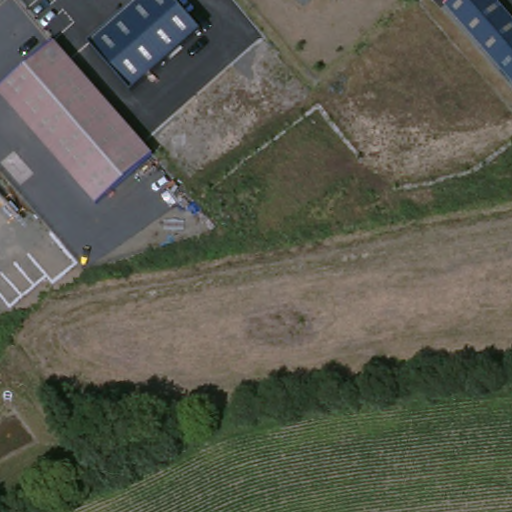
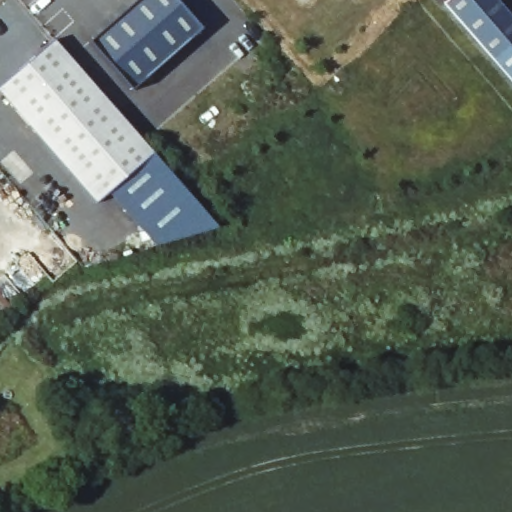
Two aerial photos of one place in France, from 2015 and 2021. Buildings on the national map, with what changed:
unchanged [(133,88),(91,42),(141,0),(177,0),(201,31),(133,88)]
unchanged [(512,19),(512,80),(439,0),(494,0),(512,19)]
unchanged [(3,79),(37,50),(50,39),(145,147),(148,151),(135,163),(104,190),(92,200),(0,95),(0,82),(3,79)]
new [(135,163),(148,151),(212,223),(151,241),(106,188),(135,163)]

